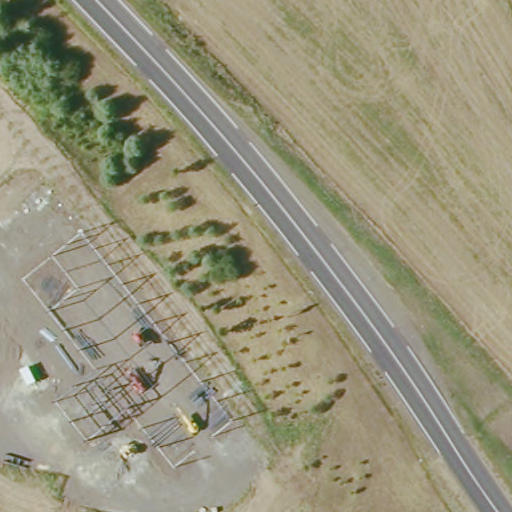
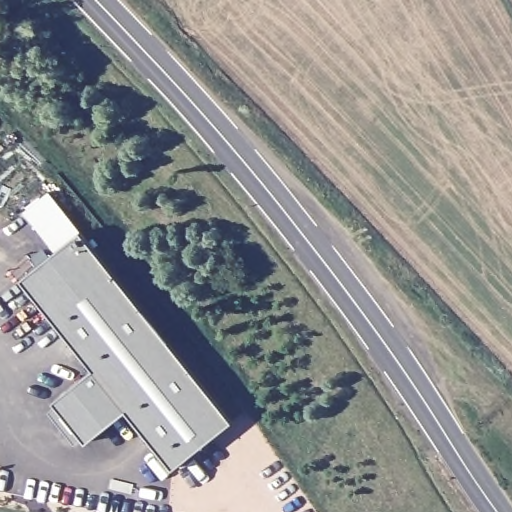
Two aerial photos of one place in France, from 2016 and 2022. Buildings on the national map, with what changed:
new [(232,420),(174,468),(126,409),(86,441),(54,401),(94,370),(21,280),(81,231),(232,420)]

